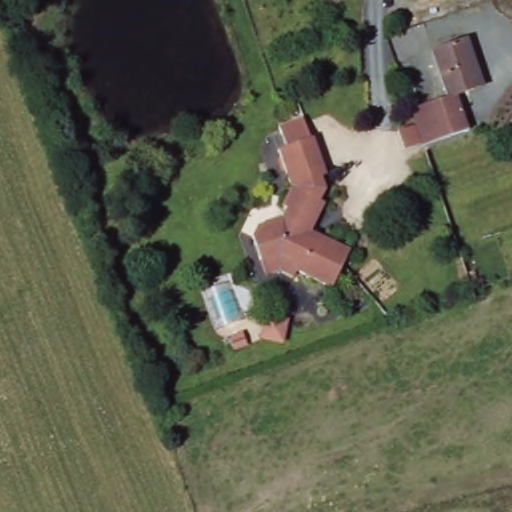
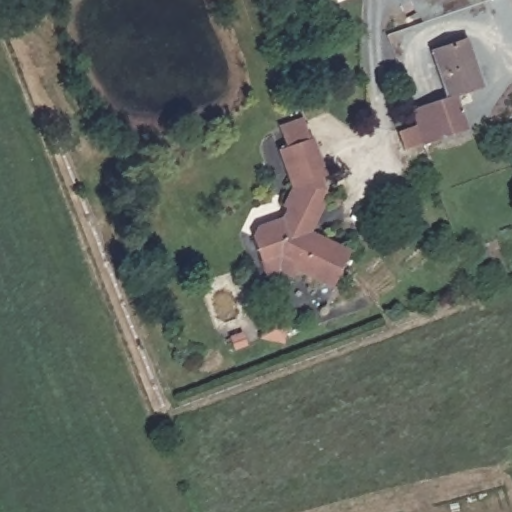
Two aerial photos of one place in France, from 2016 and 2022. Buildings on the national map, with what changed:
unchanged [(333,1),(332,0),(337,0),(333,1)]
unchanged [(416,125),(410,108),(445,97),(431,50),(466,39),(482,85),(456,94),(468,129),(422,144),(403,150),(397,131),(416,125)]
unchanged [(310,136),(322,170),(318,176),(323,189),(318,199),(321,207),(308,229),(350,250),(331,287),(295,270),(292,261),(277,254),(259,261),(249,236),(256,223),(276,216),(280,209),(278,203),(289,184),(275,148),(310,136)]

